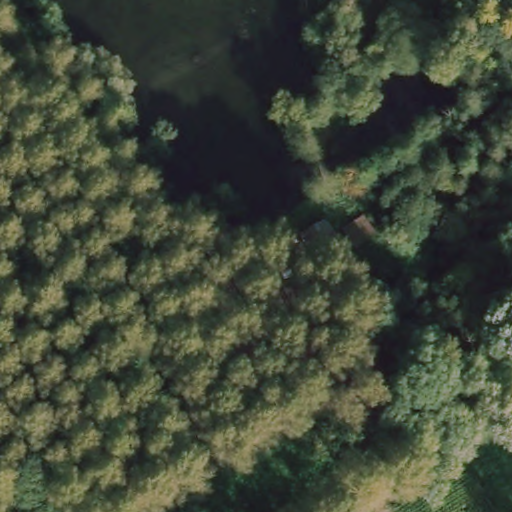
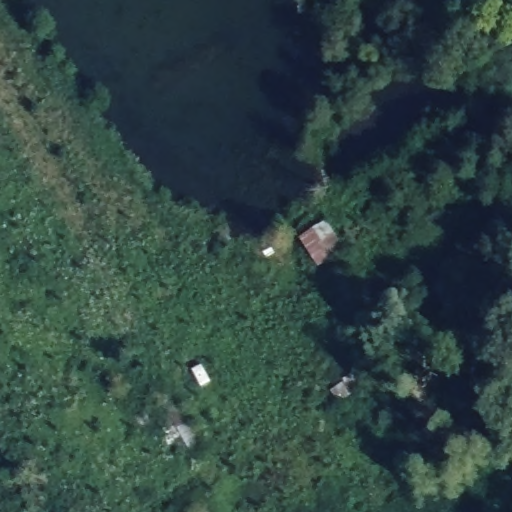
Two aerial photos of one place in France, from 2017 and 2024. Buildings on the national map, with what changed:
unchanged [(312,271),(302,259),(312,252),(297,236),(325,220),(332,233),(360,217),(377,239),(351,259),(342,247),(312,271)]

